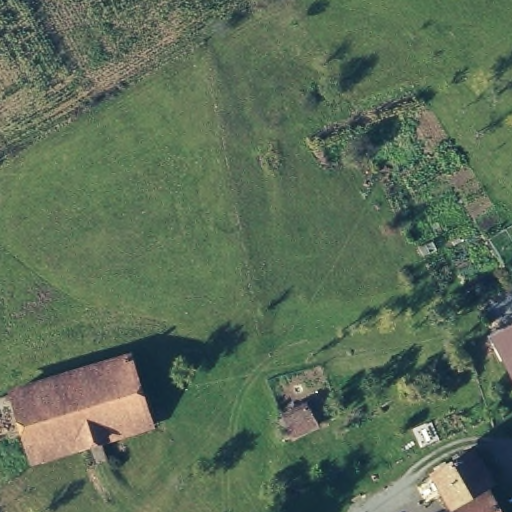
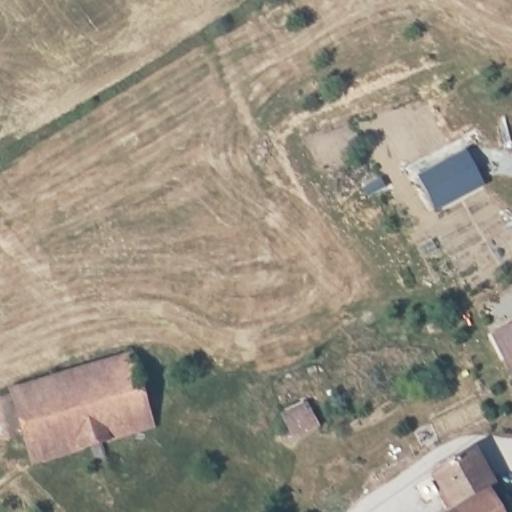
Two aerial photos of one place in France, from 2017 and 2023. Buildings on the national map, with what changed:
new [(437,212),(417,177),(466,152),(485,187),(437,212)]
unchanged [(512,319),(512,361),(495,328),(512,319)]
unchanged [(9,388),(123,353),(143,420),(30,454),(9,388)]
unchanged [(292,436),(283,418),(305,407),(315,425),(292,436)]
unchanged [(461,497),(460,495),(456,497),(452,490),(456,487),(440,459),(477,437),(496,468),(492,471),(512,505),(512,512),(433,512),(461,497)]

